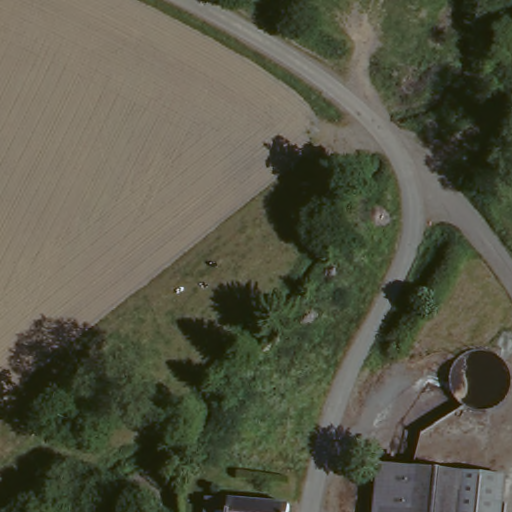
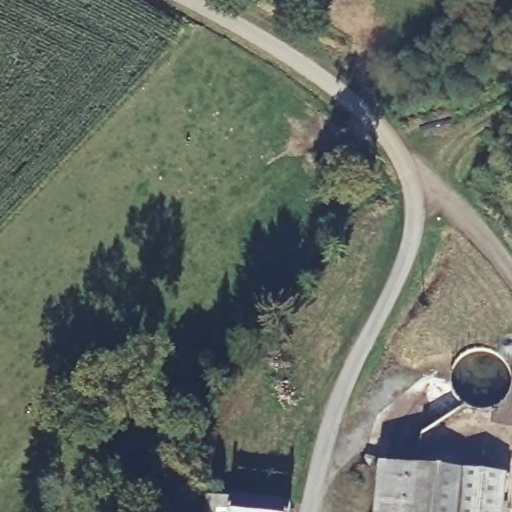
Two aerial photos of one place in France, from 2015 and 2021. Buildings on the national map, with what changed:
unchanged [(421,468),(416,512),(375,512),(381,463),(421,468)]
unchanged [(503,512),(416,512),(421,468),(506,478),(503,512)]
unchanged [(293,502),(291,512),(207,512),(209,495),(293,502)]

